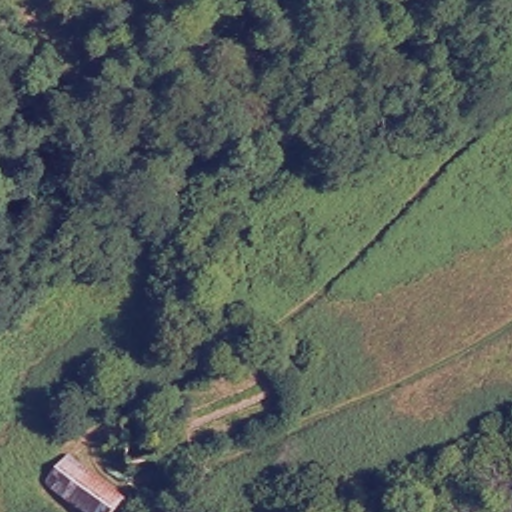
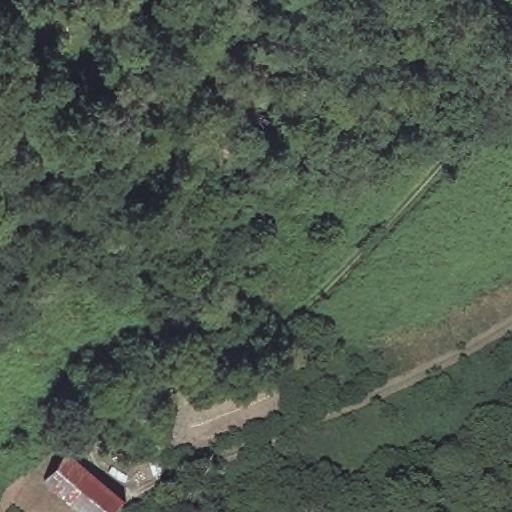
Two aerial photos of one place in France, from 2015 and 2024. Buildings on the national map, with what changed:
unchanged [(154,443),(170,441),(171,459),(123,461),(121,414),(152,411),(154,443)]
unchanged [(42,482),(68,455),(124,508),(121,512),(76,512),(42,482)]

